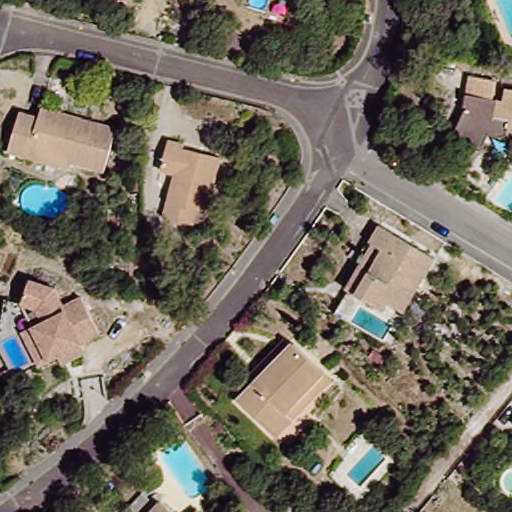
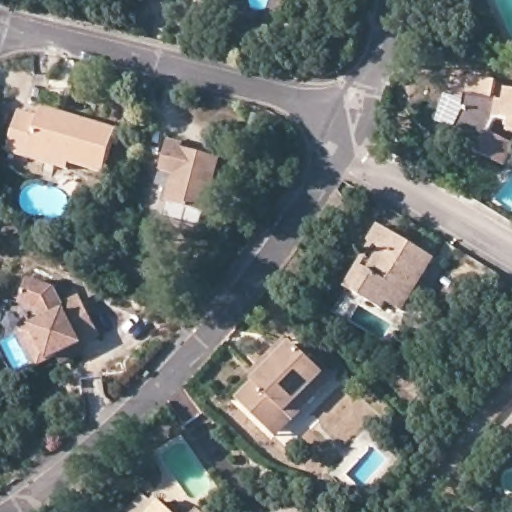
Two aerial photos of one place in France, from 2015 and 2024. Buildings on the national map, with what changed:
unchanged [(460,111),(459,110),(464,77),(492,81),(488,100),(499,102),(501,89),(512,91),(512,134),(504,132),(500,137),(497,139),(491,139),(484,135),(478,149),(449,135),(460,111)]
unchanged [(29,117),(48,123),(51,114),(126,135),(113,178),(80,168),(78,175),(18,158),(29,117)]
unchanged [(180,170),(166,167),(173,137),(189,141),(188,144),(225,153),(211,209),(202,207),(198,221),(168,214),(180,170)]
unchanged [(374,242),(384,226),(440,258),(407,313),(394,305),(390,312),(360,295),(351,290),(378,245),(374,242)]
unchanged [(50,362),(48,355),(30,359),(21,323),(43,317),(40,303),(25,296),(38,274),(60,287),(65,306),(85,301),(96,342),(70,348),(72,357),(50,362)]
unchanged [(299,415),(281,433),(242,396),(259,378),(251,372),(290,333),(296,340),(298,338),(330,369),(337,376),(299,415)]
unchanged [(166,512),(155,512),(160,507),(166,512)]

